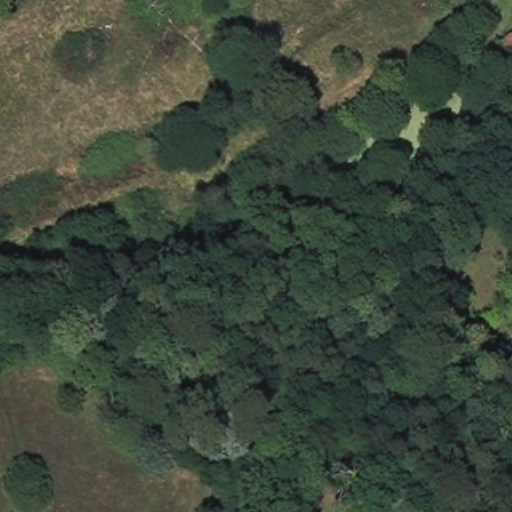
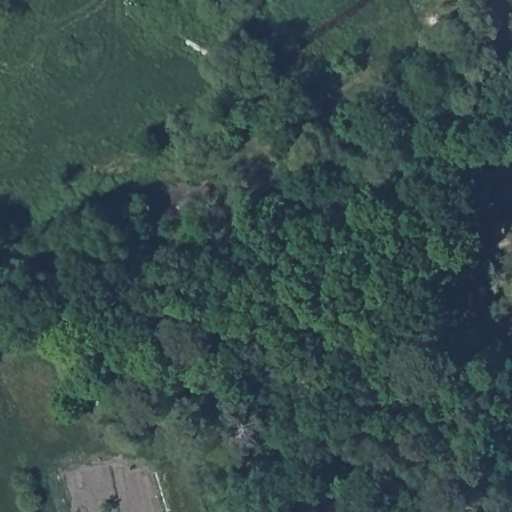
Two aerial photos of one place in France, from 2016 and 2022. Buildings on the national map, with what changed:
unchanged [(512,85),(510,86),(489,54),(512,39),(512,85)]

